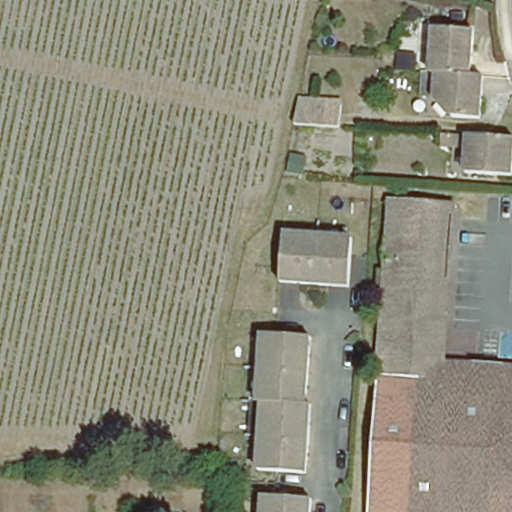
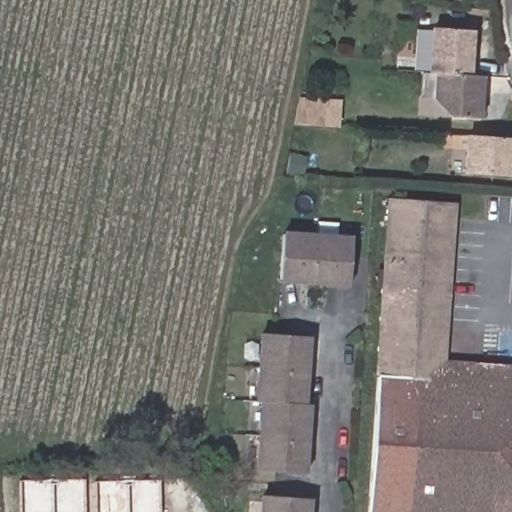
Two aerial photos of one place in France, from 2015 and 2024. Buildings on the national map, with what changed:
unchanged [(435,71),(430,70),(433,26),(472,29),(469,74),(435,71)]
unchanged [(415,53),(415,70),(396,68),(397,52),(415,53)]
unchanged [(450,114),(433,94),(435,71),(469,74),(481,74),(477,116),(450,114)]
unchanged [(295,123),(299,101),(342,105),(340,126),(295,123)]
unchanged [(467,134),(512,136),(512,166),(511,174),(464,172),(467,134)]
unchanged [(305,156),(302,175),(288,172),(291,155),(305,156)]
unchanged [(436,209),(424,383),(512,388),(512,512),(370,512),(389,205),(436,209)]
unchanged [(452,210),(443,364),(512,368),(512,388),(424,383),(436,209),(452,210)]
unchanged [(349,287),(280,282),(283,234),(352,239),(349,287)]
unchanged [(260,376),(263,333),(311,337),(307,381),(260,376)]
unchanged [(258,470),(263,403),(258,402),(260,376),(307,381),(306,405),(311,405),(306,473),(258,470)]
new [(83,478),(84,512),(19,512),(18,480),(83,478)]
new [(96,512),(95,480),(159,478),(160,512),(96,512)]
unchanged [(311,499),(311,512),(262,512),(263,495),(311,499)]

